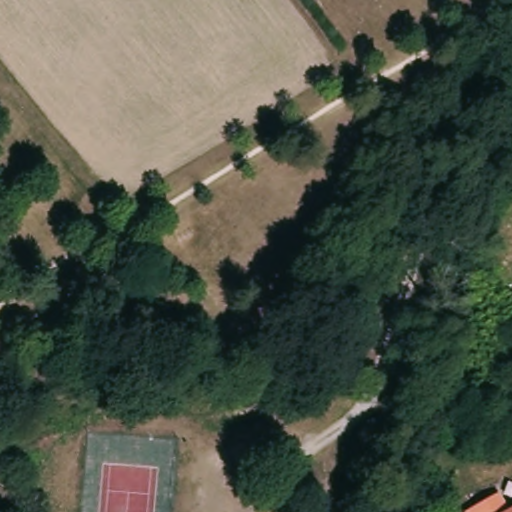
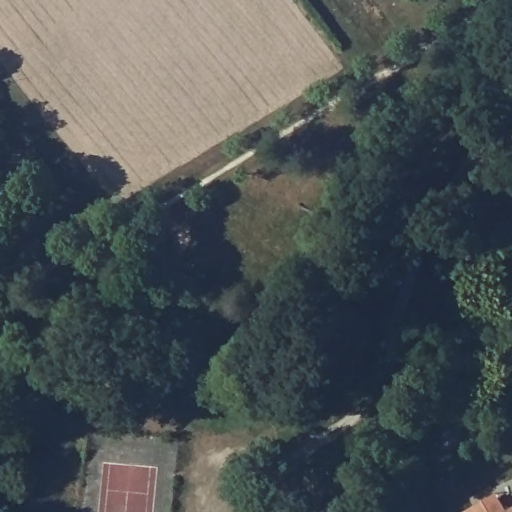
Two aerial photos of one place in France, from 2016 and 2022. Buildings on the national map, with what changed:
unchanged [(499,493),(510,512),(471,512),(472,511),(499,493)]
unchanged [(512,512),(510,512),(512,511),(512,512)]

